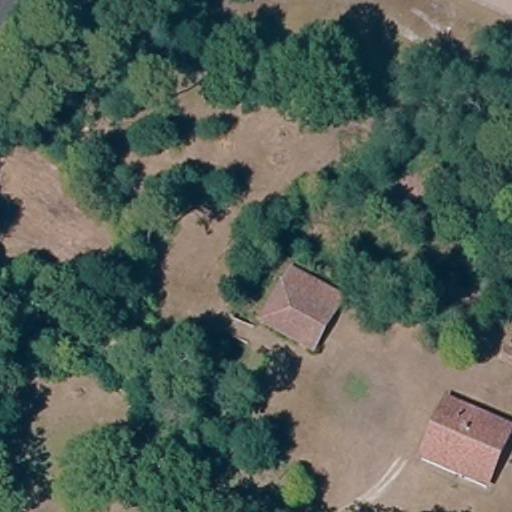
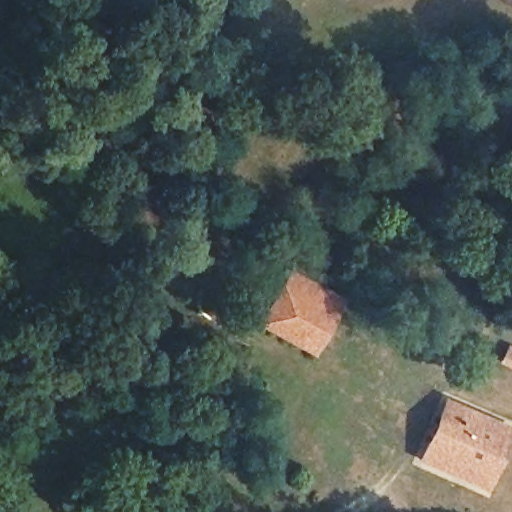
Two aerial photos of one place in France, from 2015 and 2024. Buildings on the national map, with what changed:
unchanged [(291,276),(342,304),(312,354),(261,327),(291,276)]
unchanged [(512,435),(512,443),(488,493),(412,458),(437,402),(460,412),(512,435)]

